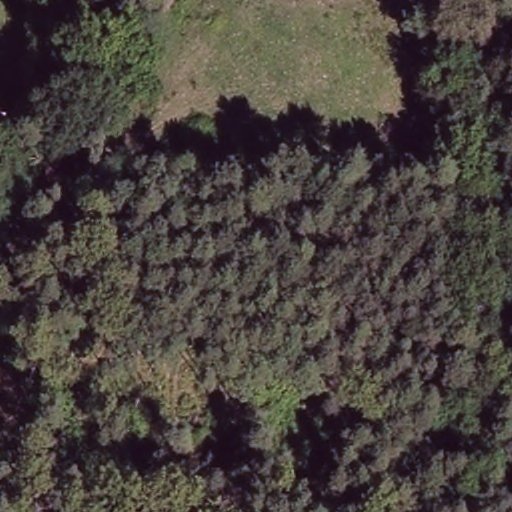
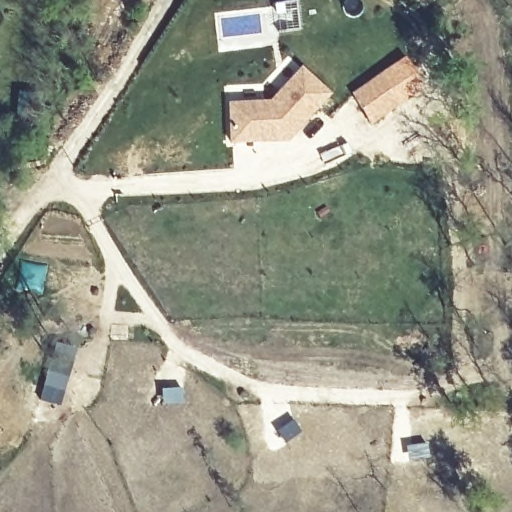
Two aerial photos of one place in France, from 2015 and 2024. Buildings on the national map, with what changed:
new [(290,141),(231,143),(228,103),(271,100),(301,67),(331,94),(290,141)]
new [(379,76),(400,107),(372,127),(353,94),(379,76)]

